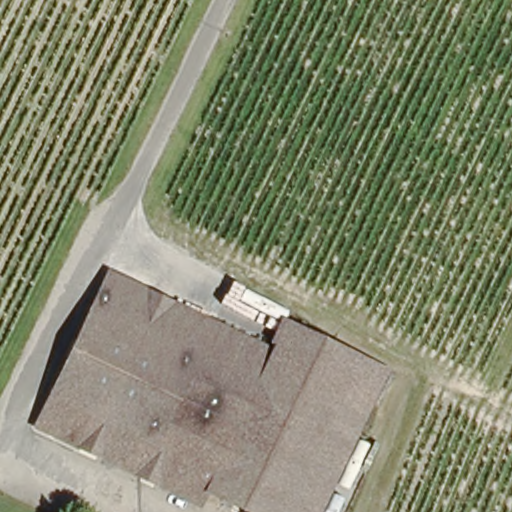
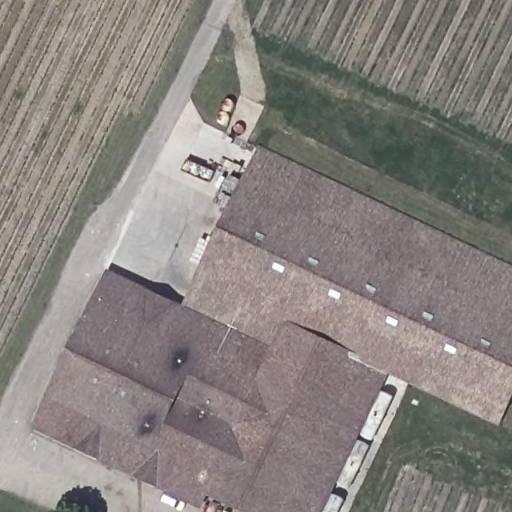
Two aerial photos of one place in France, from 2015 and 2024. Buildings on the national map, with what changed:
new [(261,146),(512,266),(512,404),(502,424),(380,369),(383,362),(288,317),(282,313),(267,343),(186,305),(261,146)]
unchanged [(186,305),(267,343),(282,313),(288,317),(383,362),(380,369),(312,512),(244,512),(247,505),(202,484),(196,497),(189,494),(32,420),(104,265),(186,305)]

